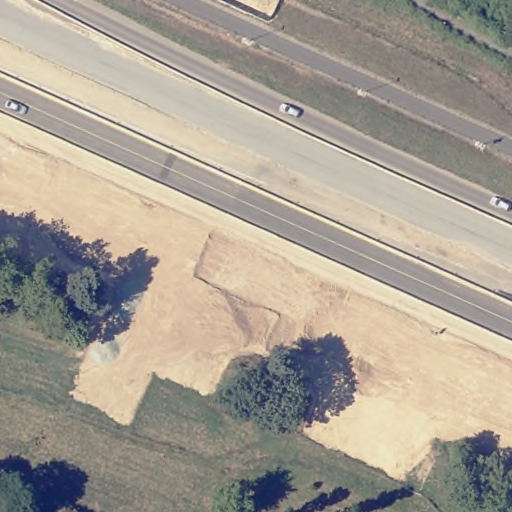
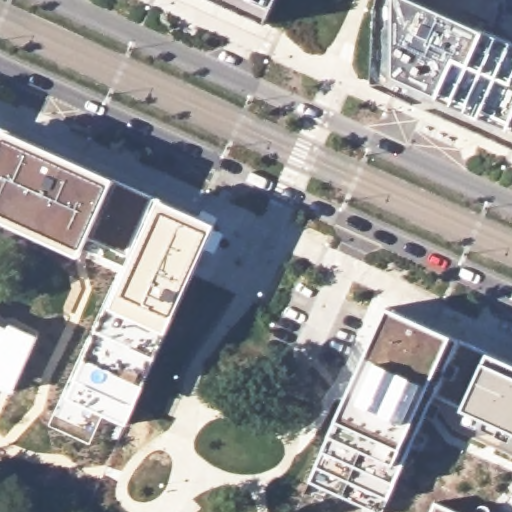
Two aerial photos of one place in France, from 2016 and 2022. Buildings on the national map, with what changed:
unchanged [(273,0),(265,20),(219,0),(273,0)]
new [(84,357),(96,329),(107,305),(111,307),(131,259),(99,246),(93,260),(0,221),(0,132),(111,181),(160,201),(216,225),(169,330),(127,426),(65,400),(75,378),(84,357)]
new [(321,452),(327,437),(387,306),(462,337),(397,483),(387,512),(366,512),(304,486),(321,452)]
new [(484,362),(489,352),(512,363),(512,430),(464,408),(484,362)]
new [(454,512),(431,512),(435,503),(454,512)]

